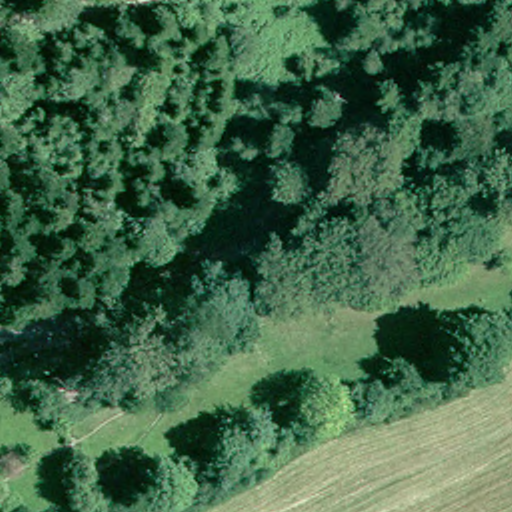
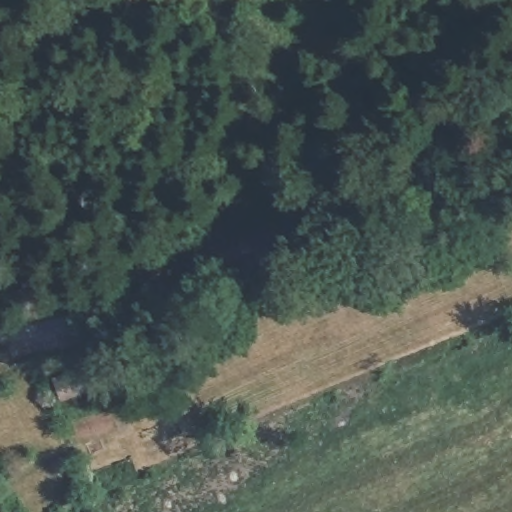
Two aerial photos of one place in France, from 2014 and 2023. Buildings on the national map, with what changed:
unchanged [(104,379),(82,387),(72,390),(71,391),(65,374),(67,373),(76,370),(97,362),(104,379)]

